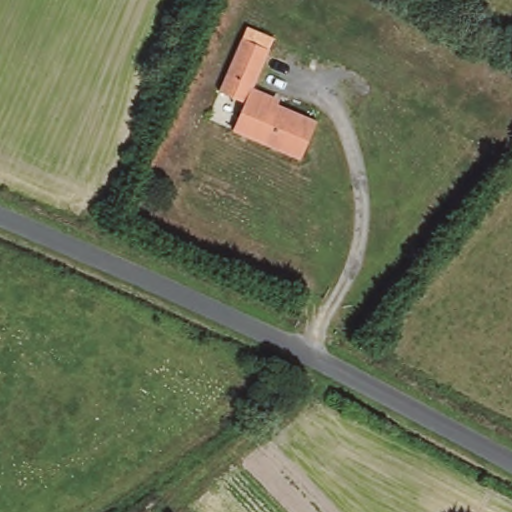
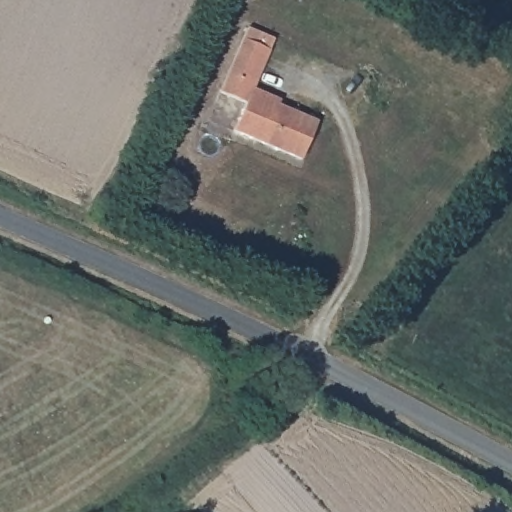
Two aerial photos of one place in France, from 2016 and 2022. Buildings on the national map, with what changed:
unchanged [(272,100),(270,105),(315,126),(304,151),(298,163),(231,133),(237,120),(244,105),(216,92),(240,39),(245,28),(271,40),(266,51),(249,90),(272,100)]

